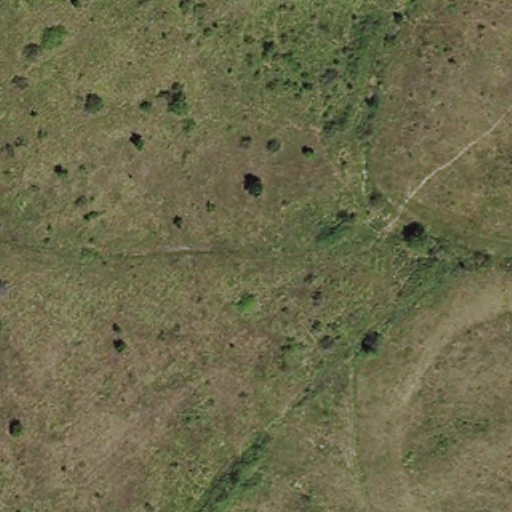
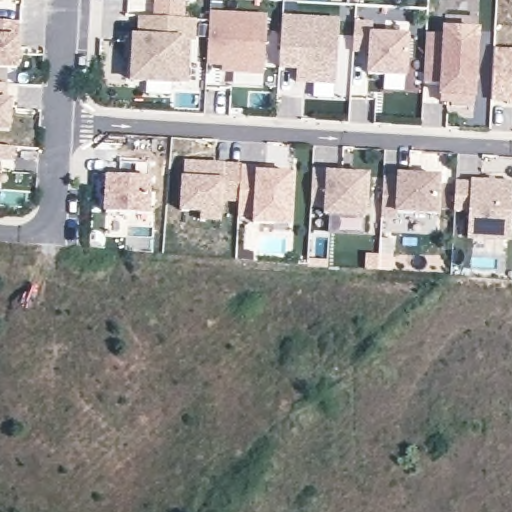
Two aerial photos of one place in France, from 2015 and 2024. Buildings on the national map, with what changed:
new [(155,0),(182,0),(181,15),(154,14),(155,0)]
new [(222,72),(222,67),(206,66),(208,12),(266,15),(264,75),(222,72)]
new [(133,37),(138,38),(140,17),(193,20),(192,41),(187,40),(184,84),(131,81),(133,37)]
new [(17,22),(16,38),(18,38),(17,68),(0,67),(0,21),(17,22)]
new [(354,21),(373,22),(372,33),(408,35),(408,76),(403,77),(404,92),(382,92),(384,76),(365,75),(367,53),(352,53),(354,21)]
new [(296,69),(278,68),(281,24),(338,27),(335,88),(311,87),(295,86),(295,79),(296,69)]
new [(425,34),(443,35),(443,29),(477,31),(473,103),(439,101),(440,85),(422,84),(425,34)]
new [(512,52),(512,105),(506,105),(506,102),(491,102),(494,52),(512,52)]
new [(7,84),(5,101),(11,101),(9,131),(0,130),(0,84),(7,84)]
new [(13,147),(12,162),(0,161),(0,146),(13,147)]
new [(238,203),(224,203),(223,215),(221,222),(199,222),(199,214),(177,213),(180,177),(184,161),(240,167),(238,203)]
new [(107,177),(118,178),(119,162),(149,164),(146,216),(104,214),(107,177)]
new [(273,224),(253,223),(253,218),(237,217),(240,167),(257,168),(266,168),(265,173),(292,175),(289,215),(289,225),(273,224)]
new [(312,170),(327,171),(327,174),(367,176),(364,217),(324,215),(325,207),(310,206),(312,170)]
new [(383,178),(398,179),(398,175),(425,176),(425,181),(438,182),(437,212),(397,210),(397,215),(381,214),(383,178)]
new [(470,183),(470,181),(512,183),(512,220),(511,239),(469,237),(471,209),(454,208),(455,183),(470,183)]

